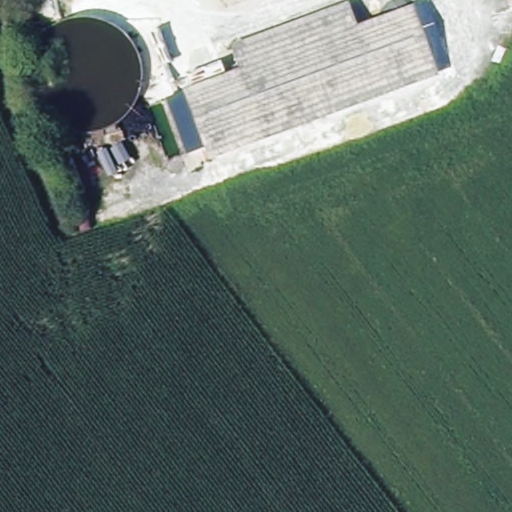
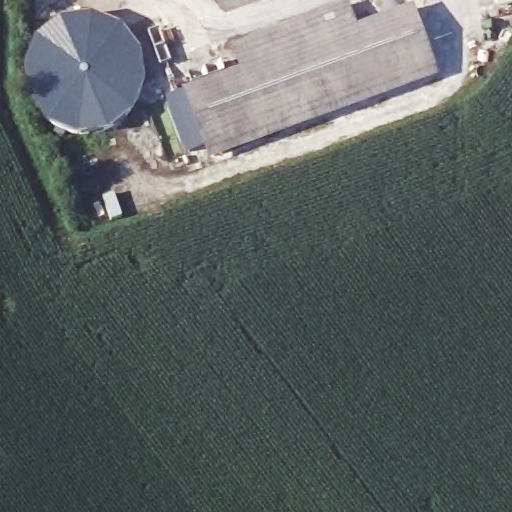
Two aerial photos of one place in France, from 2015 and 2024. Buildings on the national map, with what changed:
unchanged [(221,0),(233,0),(222,4),(221,0)]
unchanged [(235,50),(345,11),(353,36),(244,75),(235,50)]
new [(91,15),(122,27),(142,52),(145,81),(132,112),(109,131),(77,135),(48,124),(29,100),(25,68),(35,39),(60,19),(91,15)]
unchanged [(353,36),(410,15),(427,67),(206,147),(186,96),(244,75),(353,36)]
demolished [(78,26),(87,24),(115,30),(134,46),(143,70),(143,92),(129,115),(107,131),(77,129),(78,26)]
demolished [(68,129),(44,108),(35,81),(36,62),(49,42),(70,27),(78,26),(77,129),(68,129)]

